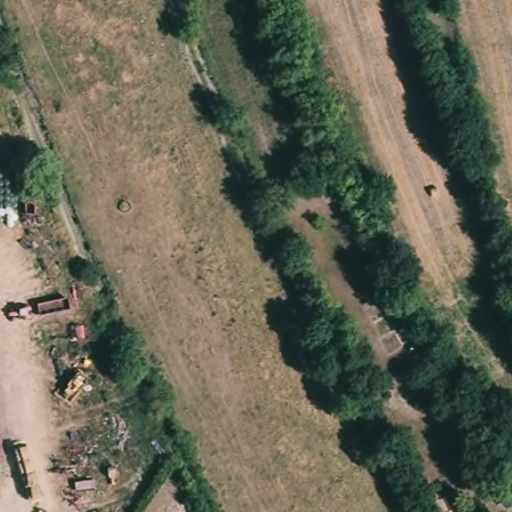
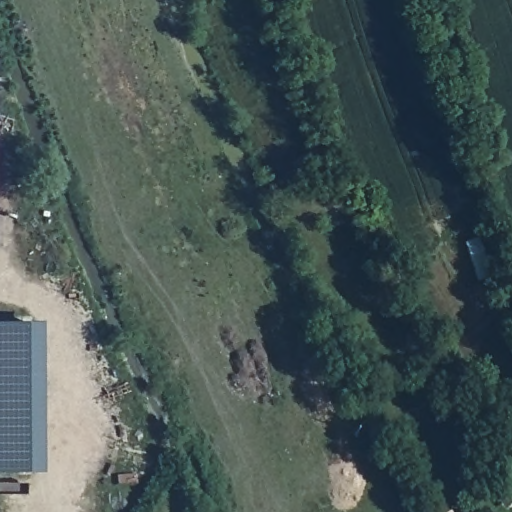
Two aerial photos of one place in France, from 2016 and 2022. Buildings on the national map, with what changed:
new [(41,471),(0,471),(0,321),(40,321),(41,471)]

